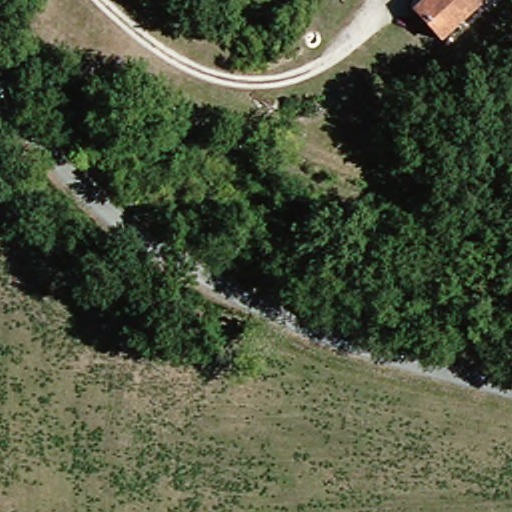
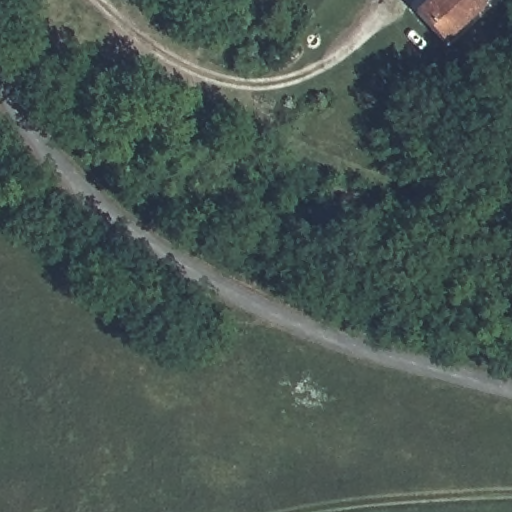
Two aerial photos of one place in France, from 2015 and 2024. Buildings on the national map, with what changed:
unchanged [(488,0),(488,1),(479,8),(483,11),(443,47),(415,15),(432,0),(488,0)]

